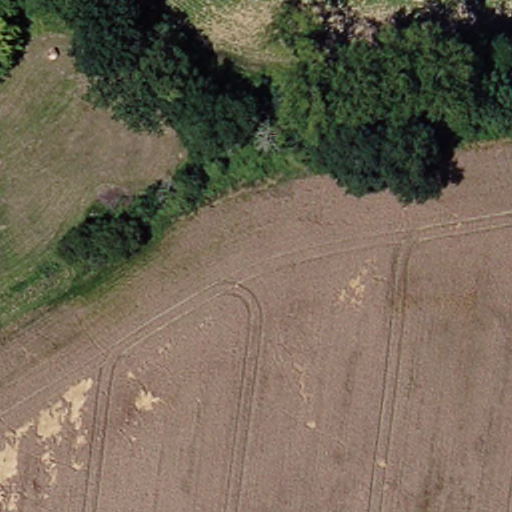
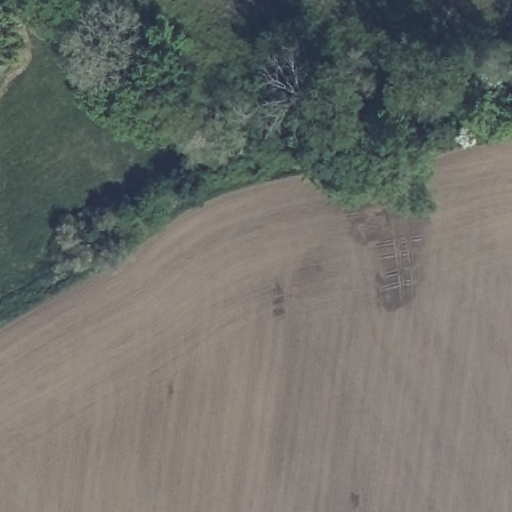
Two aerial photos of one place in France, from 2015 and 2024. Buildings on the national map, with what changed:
[]

